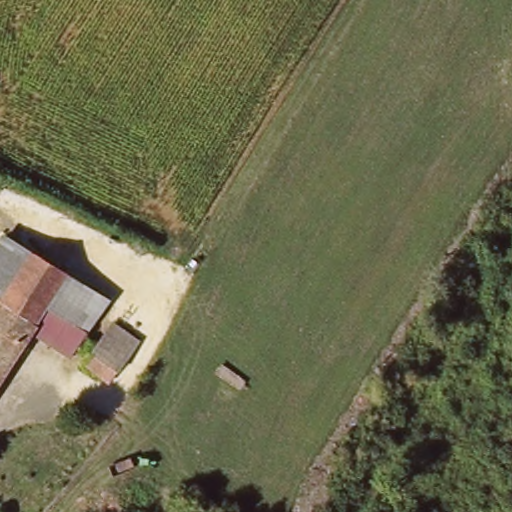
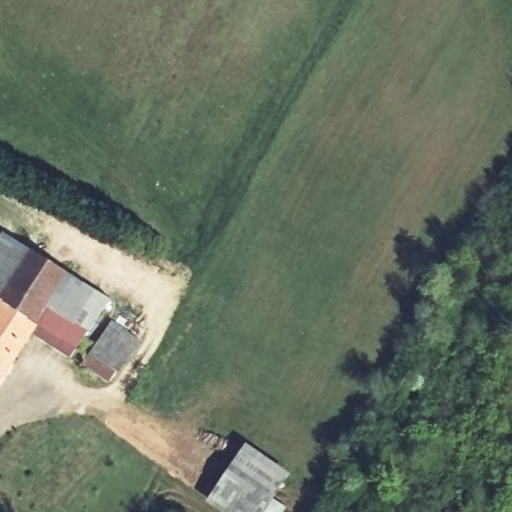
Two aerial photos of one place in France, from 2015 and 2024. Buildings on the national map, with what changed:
unchanged [(3,233),(30,251),(0,301),(0,238),(3,233)]
unchanged [(30,251),(65,273),(36,312),(30,322),(0,303),(0,301),(30,251)]
unchanged [(36,312),(65,273),(110,300),(75,338),(36,312)]
unchanged [(30,322),(36,312),(75,338),(66,352),(32,331),(0,377),(0,303),(30,322)]
unchanged [(113,322),(140,340),(109,383),(85,366),(113,322)]
new [(291,474),(274,497),(286,507),(283,512),(224,512),(205,500),(246,442),(291,474)]

